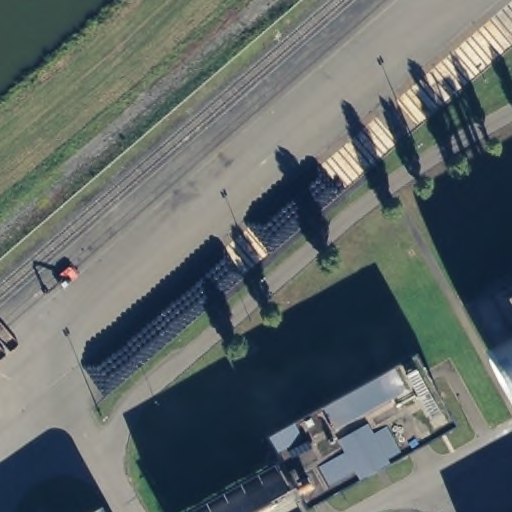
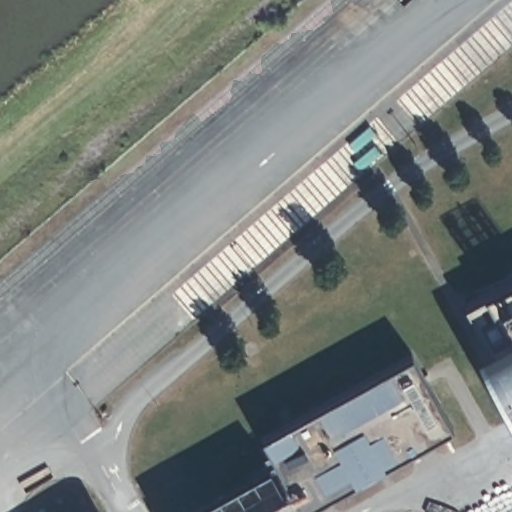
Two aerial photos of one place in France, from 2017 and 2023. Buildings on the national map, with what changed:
unchanged [(512,274),(512,400),(464,303),(512,274)]
unchanged [(302,504),(261,430),(412,347),(452,420),(302,504)]
unchanged [(187,512),(272,464),(297,509),(292,512),(187,512)]
unchanged [(89,512),(84,512),(88,510),(89,512)]

